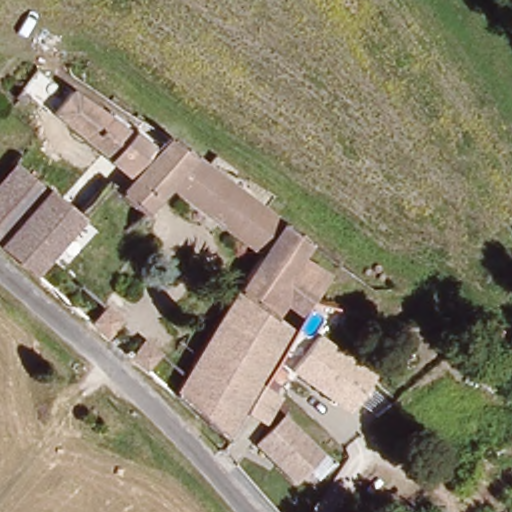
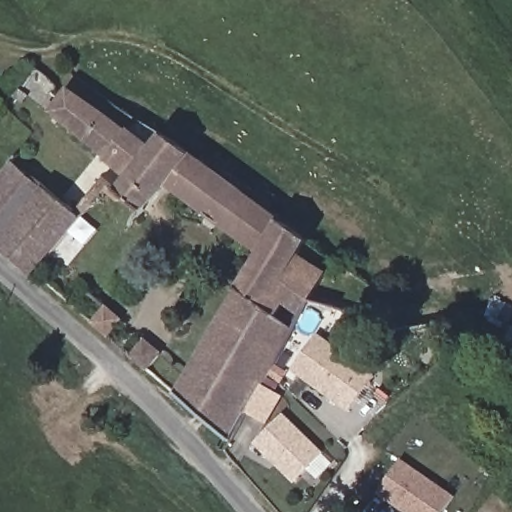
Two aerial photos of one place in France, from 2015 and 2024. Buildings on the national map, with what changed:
unchanged [(19,75),(33,60),(53,74),(39,91),(19,75)]
unchanged [(245,410),(226,442),(222,448),(219,439),(166,392),(259,254),(164,179),(152,194),(143,206),(118,185),(127,175),(50,114),(54,109),(44,101),(52,91),(62,99),(68,92),(72,87),(150,144),(160,132),(202,161),(211,149),(262,188),(254,199),(298,234),(291,244),(325,277),(310,279),(304,288),(311,304),(261,384),(278,395),(266,415),(262,421),(245,410)]
unchanged [(11,162),(73,215),(105,179),(110,184),(29,276),(0,250),(0,175),(11,162)]
new [(490,302),(503,308),(505,303),(512,306),(512,350),(477,332),(490,302)]
unchanged [(129,319),(114,336),(96,320),(111,304),(129,319)]
unchanged [(383,378),(358,412),(302,371),(327,337),(383,378)]
unchanged [(168,353),(153,371),(136,356),(152,339),(168,353)]
unchanged [(317,454),(305,466),(289,481),(252,443),(275,421),(280,416),(317,454)]
new [(444,512),(404,512),(377,494),(400,460),(455,496),(444,512)]

